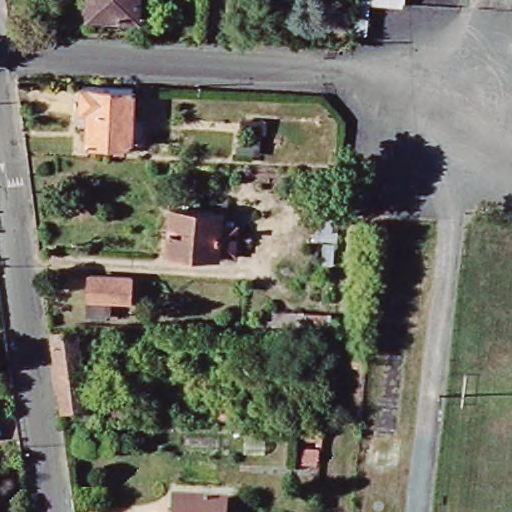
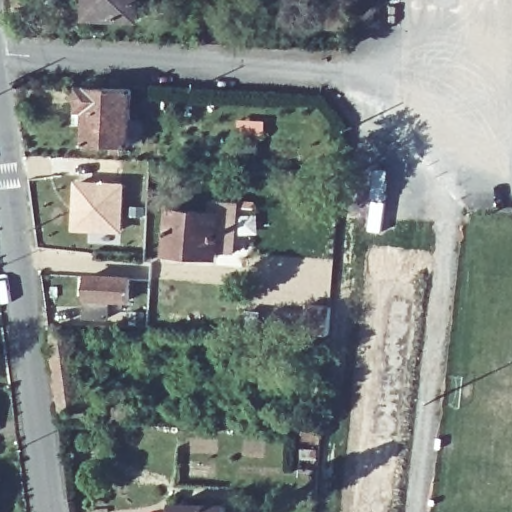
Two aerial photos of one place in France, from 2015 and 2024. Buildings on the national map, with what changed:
unchanged [(134,0),(134,17),(94,16),(94,0),(134,0)]
demolished [(352,3),(352,0),(396,0),(396,5),(371,4),(369,33),(350,32),(352,3)]
unchanged [(85,108),(86,87),(134,90),(131,145),(90,144),(92,109),(85,108)]
new [(72,179),(126,181),(124,232),(70,231),(72,179)]
unchanged [(171,209),(229,213),(228,227),(238,227),(236,253),(220,252),(220,257),(168,253),(171,209)]
unchanged [(88,276),(131,279),(130,299),(110,298),(106,317),(85,316),(88,276)]
unchanged [(126,421),(97,423),(64,423),(53,334),(74,331),(84,404),(96,403),(96,406),(126,405),(126,421)]
unchanged [(324,431),(324,447),(302,445),(303,430),(324,431)]
unchanged [(177,503),(227,505),(227,512),(176,512),(177,503)]

